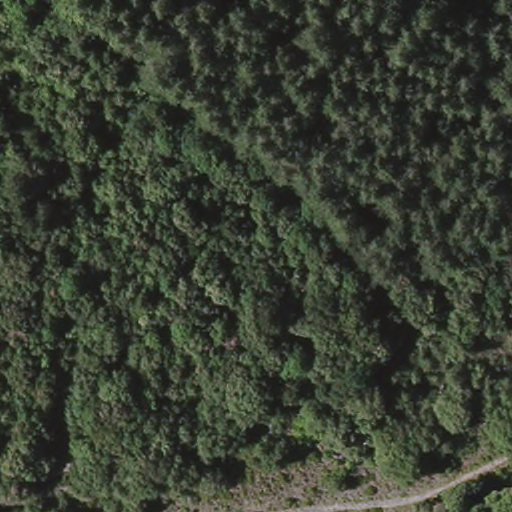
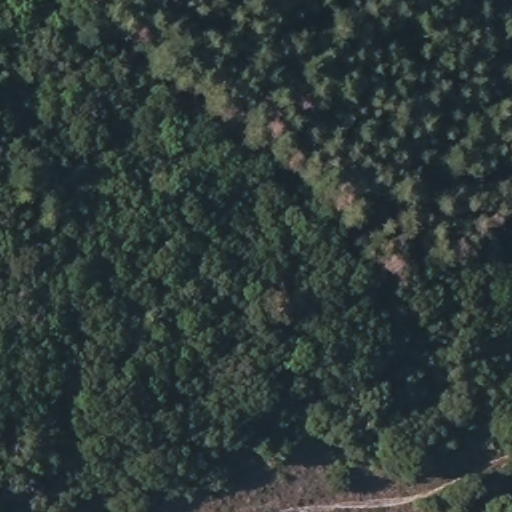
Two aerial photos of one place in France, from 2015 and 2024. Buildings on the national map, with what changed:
unchanged [(280,452),(264,454),(258,438),(274,432),(280,452)]

